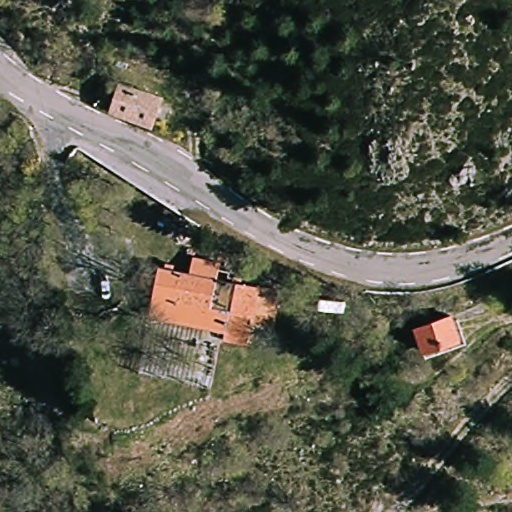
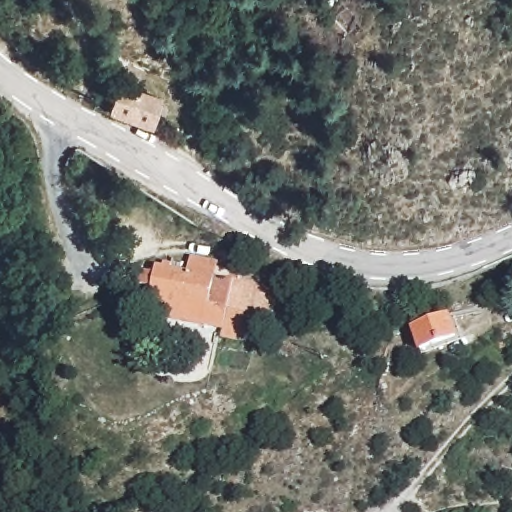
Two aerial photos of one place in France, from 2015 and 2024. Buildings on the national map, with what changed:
unchanged [(119,82),(162,94),(156,126),(109,111),(119,82)]
unchanged [(194,274),(195,258),(249,268),(246,285),(284,291),(281,328),(257,325),(252,348),(227,345),(226,335),(154,330),(158,270),(194,274)]
unchanged [(417,328),(425,325),(424,314),(440,311),(442,319),(453,318),(458,340),(423,350),(417,328)]

